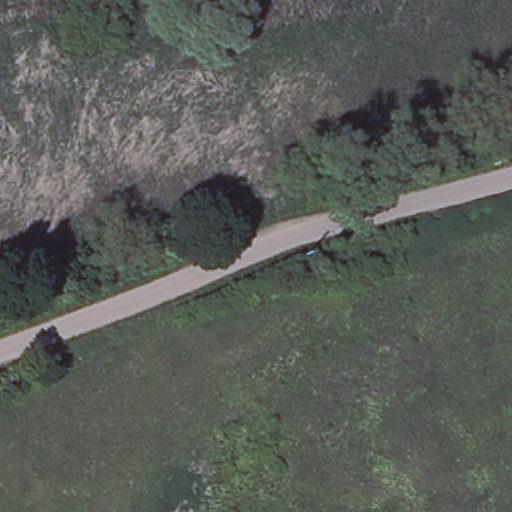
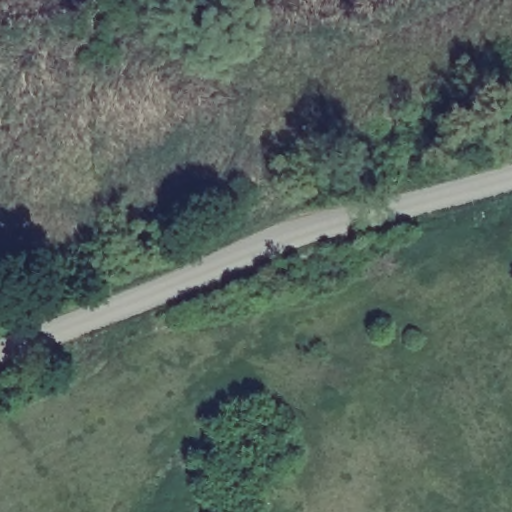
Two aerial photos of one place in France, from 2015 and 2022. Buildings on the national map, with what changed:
unchanged [(69,496),(77,512),(42,512),(42,511),(69,496)]

